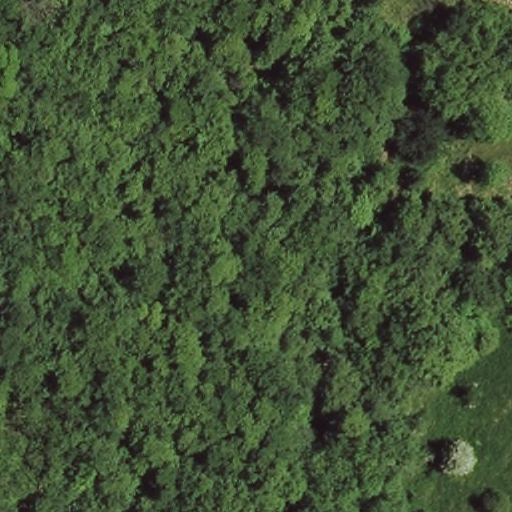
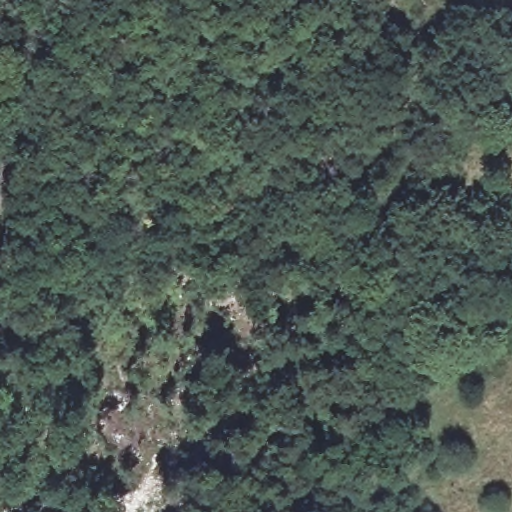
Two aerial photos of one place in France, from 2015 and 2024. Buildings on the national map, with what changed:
[]

